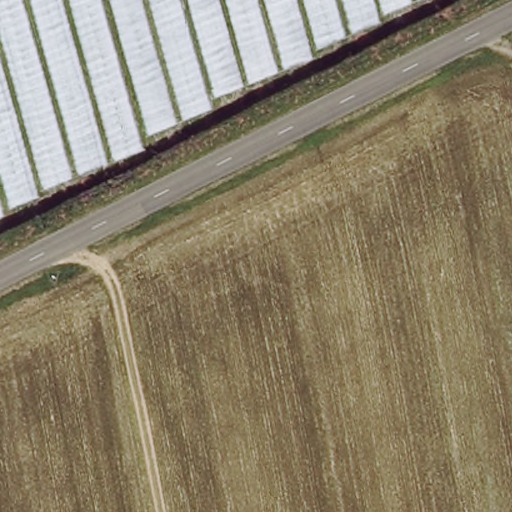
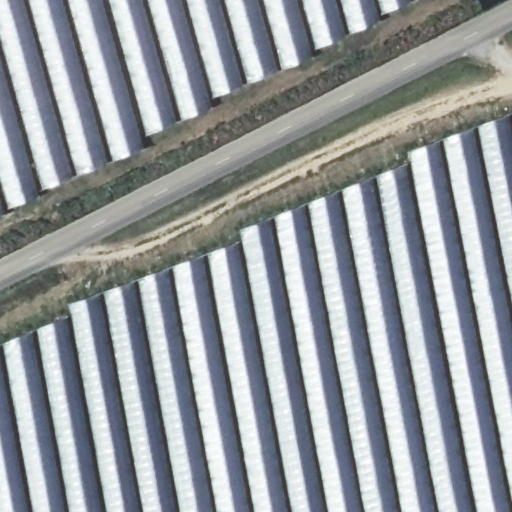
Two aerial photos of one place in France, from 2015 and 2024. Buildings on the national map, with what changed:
unchanged [(140,148),(45,192),(0,214),(0,0),(420,0),(140,148)]
new [(67,305),(239,242),(237,231),(408,163),(406,155),(512,113),(512,512),(0,512),(0,346),(69,316),(67,305)]

